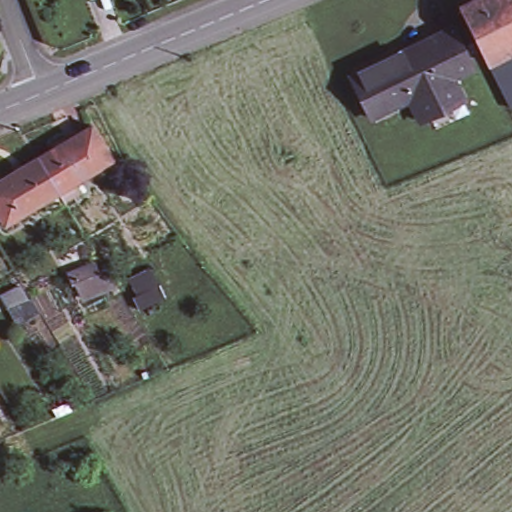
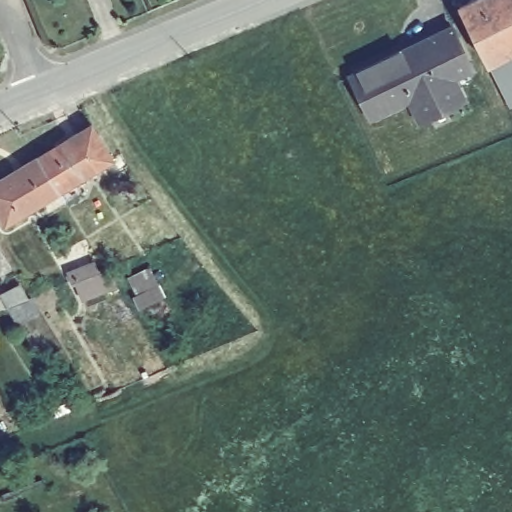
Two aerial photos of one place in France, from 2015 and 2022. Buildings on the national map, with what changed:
unchanged [(463,9),(481,0),(512,0),(512,103),(491,62),(463,9)]
unchanged [(453,114),(428,125),(425,126),(419,113),(415,104),(377,122),(356,79),(396,60),(409,54),(437,41),(458,31),(479,74),(460,83),(465,94),(470,106),(453,114)]
unchanged [(92,129),(112,164),(60,194),(40,159),(92,129)]
unchanged [(40,159),(60,194),(42,205),(6,226),(0,216),(0,182),(40,159)]
unchanged [(104,271),(113,287),(76,301),(70,285),(104,271)]
unchanged [(155,283),(160,297),(132,309),(125,296),(155,283)]

